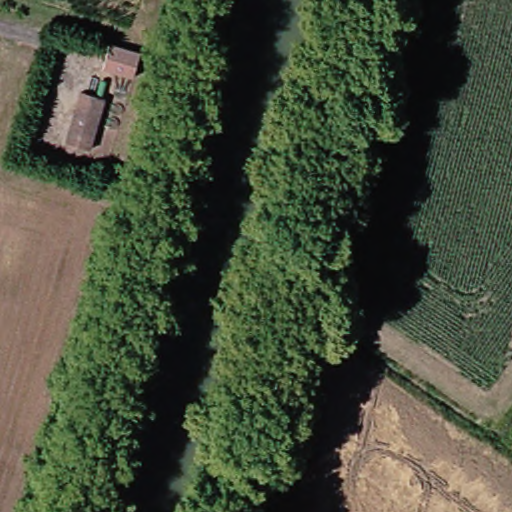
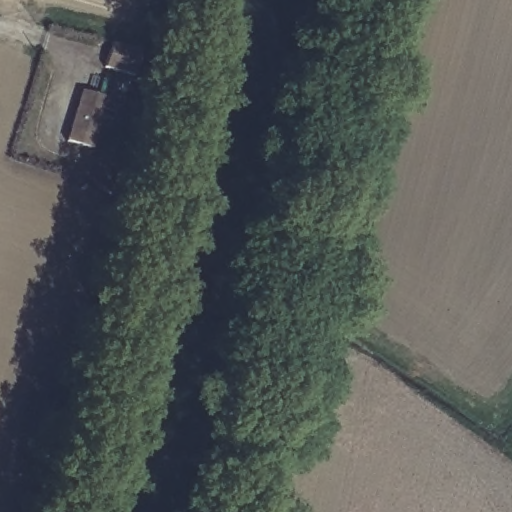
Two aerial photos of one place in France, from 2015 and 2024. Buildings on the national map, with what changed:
unchanged [(132,67),(105,58),(110,35),(138,43),(132,67)]
unchanged [(99,144),(70,137),(82,86),(109,93),(99,144)]

